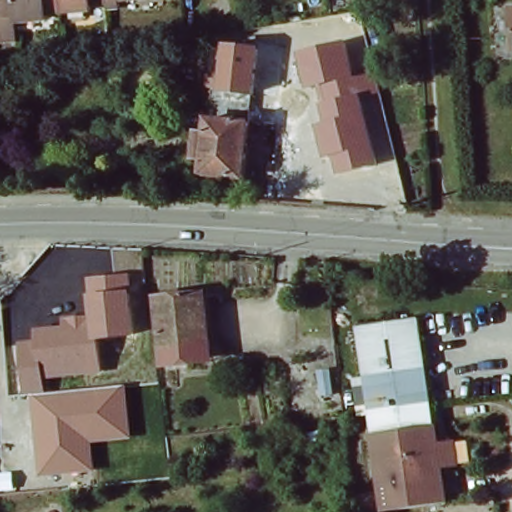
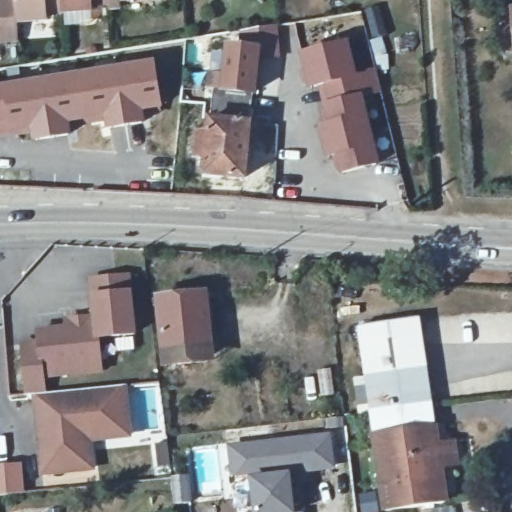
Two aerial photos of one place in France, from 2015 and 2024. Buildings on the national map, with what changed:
unchanged [(45,20),(15,23),(14,3),(14,1),(14,0),(58,0),(60,13),(44,15),(45,20)]
unchanged [(90,4),(90,10),(60,13),(58,0),(105,0),(105,1),(105,3),(90,4)]
unchanged [(105,0),(121,0),(105,1),(105,0)]
unchanged [(15,23),(17,41),(0,42),(0,3),(14,1),(14,3),(15,23)]
unchanged [(356,74),(376,70),(384,98),(365,102),(381,166),(340,176),(335,157),(326,158),(318,126),(326,124),(321,105),(328,105),(322,85),(309,89),(299,55),(349,43),(356,74)]
unchanged [(257,95),(225,94),(229,45),(261,50),(257,95)]
new [(158,108),(142,111),(144,122),(101,129),(100,118),(68,122),(69,135),(28,140),(26,135),(0,138),(0,84),(153,58),(158,108)]
unchanged [(250,180),(203,176),(208,118),(255,124),(250,180)]
unchanged [(133,291),(138,336),(100,340),(103,373),(47,380),(48,393),(127,386),(133,439),(95,443),(97,471),(40,477),(31,395),(24,395),(19,343),(36,342),(35,329),(65,326),(63,317),(90,315),(89,296),(89,277),(131,275),(133,291)]
unchanged [(168,363),(161,297),(205,292),(213,358),(168,363)]
unchanged [(445,500),(384,509),(358,328),(420,320),(445,500)]
new [(317,432),(331,427),(337,469),(304,474),(303,467),(293,469),(247,476),(231,478),(226,442),(317,432)]
new [(247,476),(293,469),(299,510),(303,510),(303,512),(250,512),(247,476)]
new [(191,474),(193,502),(173,504),(170,476),(191,474)]

